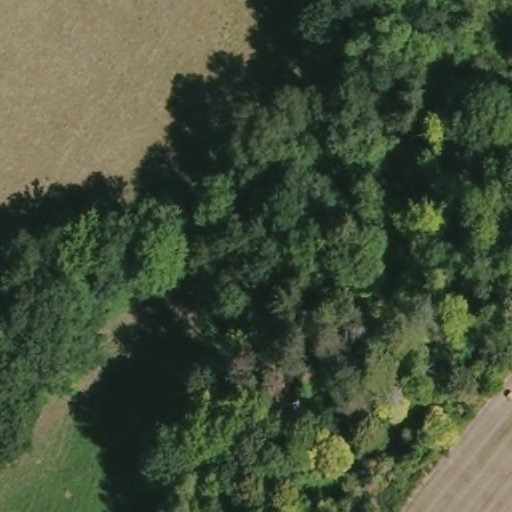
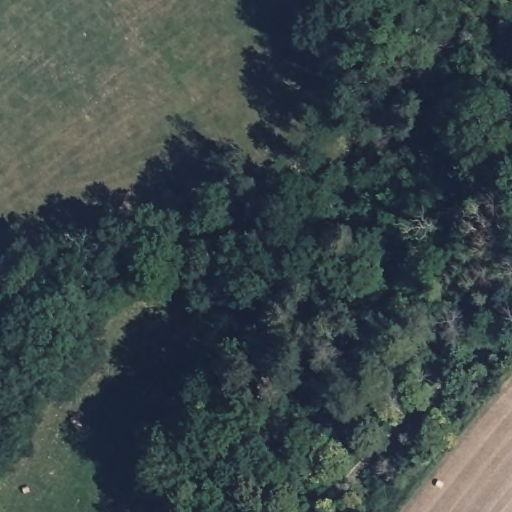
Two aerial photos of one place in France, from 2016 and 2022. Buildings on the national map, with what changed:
[]

